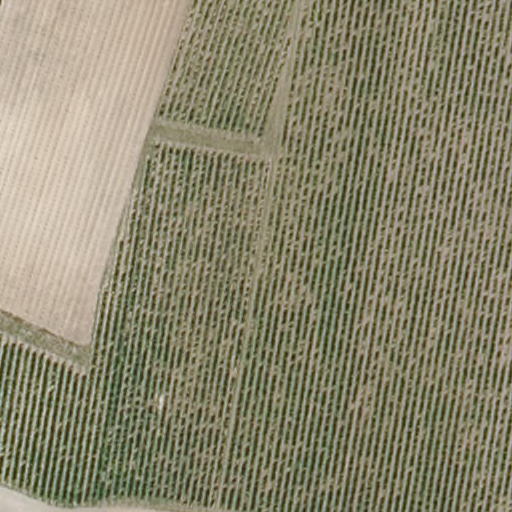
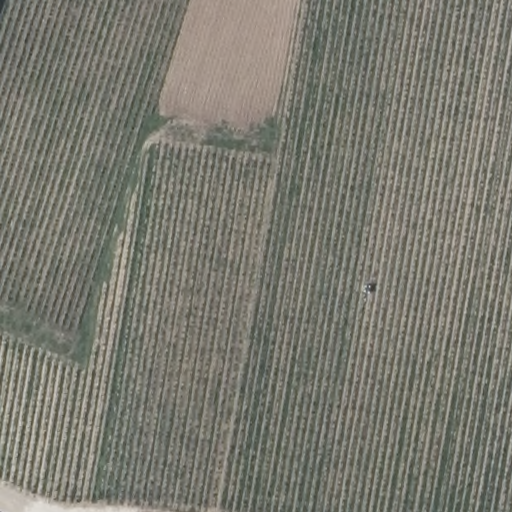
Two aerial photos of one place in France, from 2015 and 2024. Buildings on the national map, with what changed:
[]

